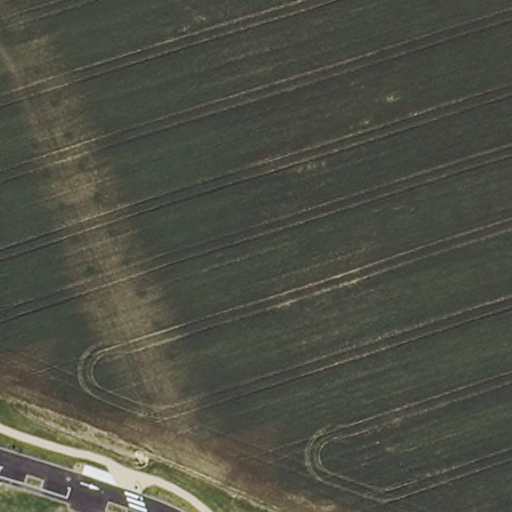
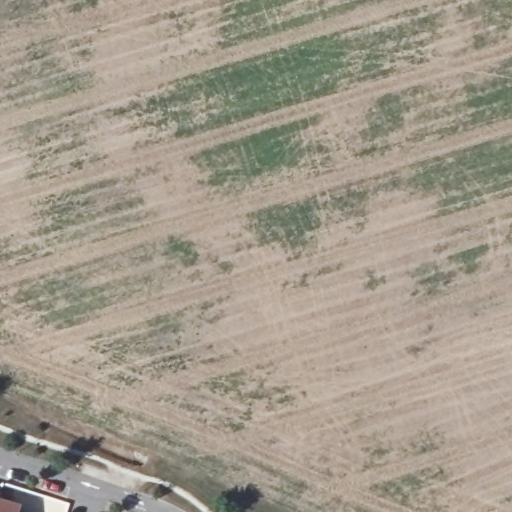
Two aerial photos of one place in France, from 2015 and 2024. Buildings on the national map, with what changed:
new [(24,505),(22,512),(0,512),(0,498),(24,505)]

